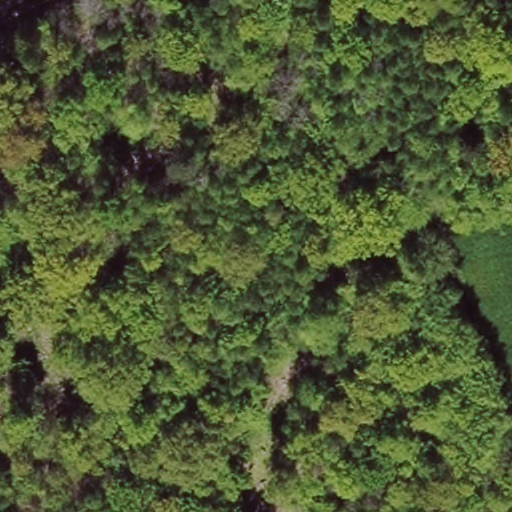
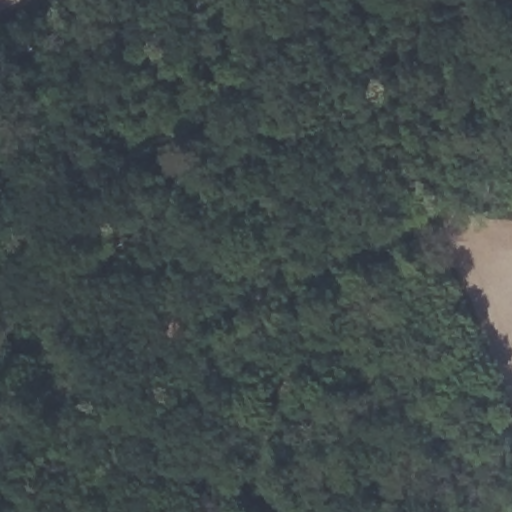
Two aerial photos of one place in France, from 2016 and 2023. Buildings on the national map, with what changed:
[]

